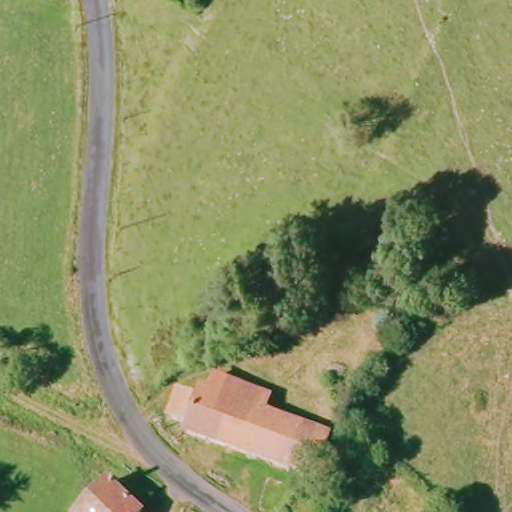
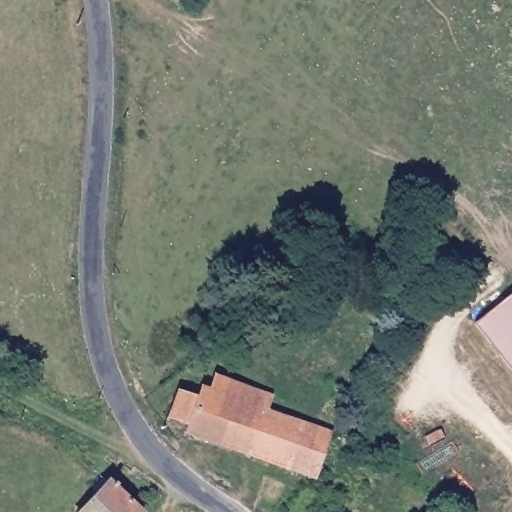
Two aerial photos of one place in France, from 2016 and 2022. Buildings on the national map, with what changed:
new [(474,324),(512,293),(512,372),(474,324)]
unchanged [(274,397),(268,419),(336,445),(319,492),(171,430),(178,412),(183,413),(188,399),(199,403),(203,393),(212,395),(221,375),(230,379),(249,387),(274,397)]
unchanged [(138,512),(88,512),(113,488),(138,512)]

